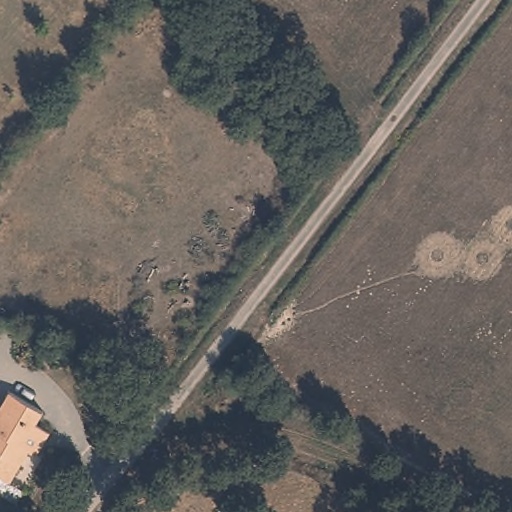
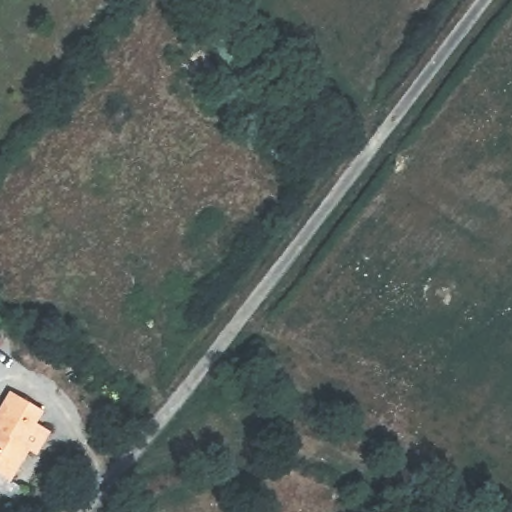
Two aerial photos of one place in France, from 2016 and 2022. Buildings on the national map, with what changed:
unchanged [(32,449),(14,480),(0,471),(0,415),(15,389),(49,409),(42,423),(56,430),(40,454),(32,449)]

